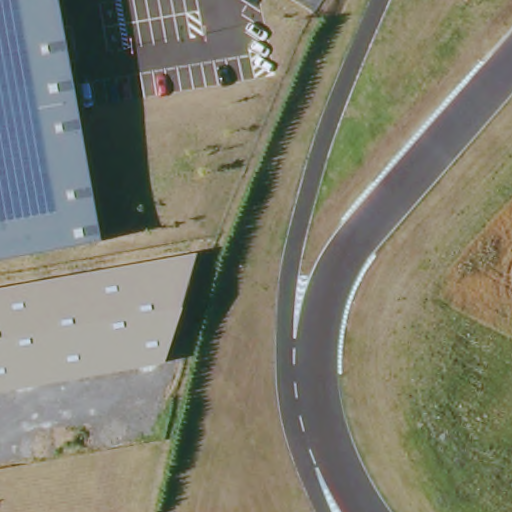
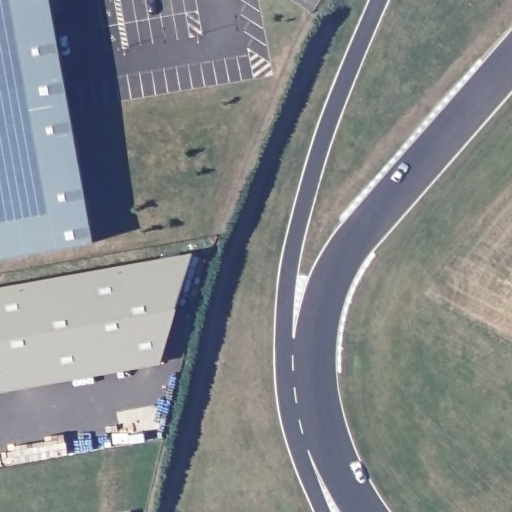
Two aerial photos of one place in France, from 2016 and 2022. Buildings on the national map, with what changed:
unchanged [(50,0),(92,243),(0,258),(0,0),(50,0)]
unchanged [(162,365),(0,393),(0,288),(195,254),(162,365)]

